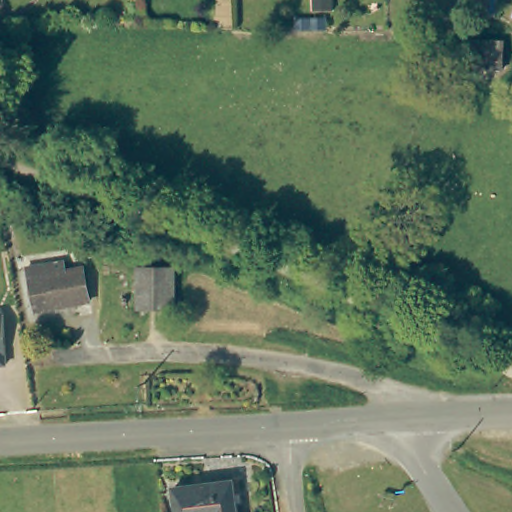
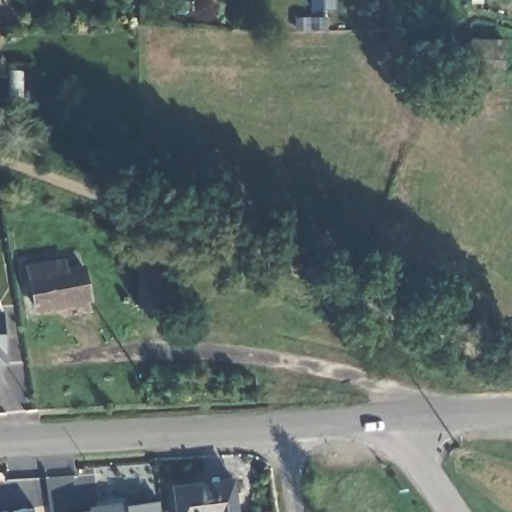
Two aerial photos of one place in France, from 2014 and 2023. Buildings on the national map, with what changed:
unchanged [(472,39),(504,40),(503,69),(471,68),(472,39)]
unchanged [(65,271),(83,267),(90,300),(37,310),(31,278),(28,267),(41,265),(63,260),(65,271)]
unchanged [(171,262),(171,300),(171,303),(145,303),(133,303),(133,262),(171,262)]
unchanged [(3,313),(6,364),(0,364),(0,314),(3,313)]
unchanged [(233,512),(172,512),(168,482),(229,475),(233,512)]
new [(80,512),(90,510),(89,506),(131,501),(133,505),(161,501),(162,512),(80,512)]

